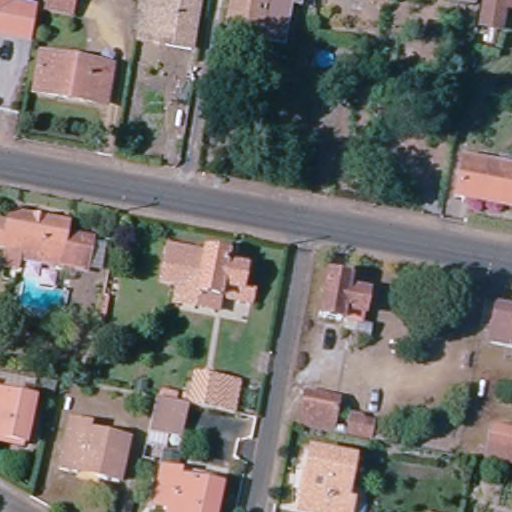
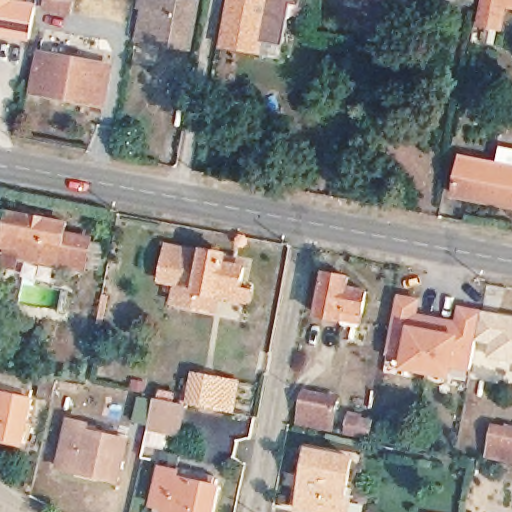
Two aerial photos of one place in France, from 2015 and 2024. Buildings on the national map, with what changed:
unchanged [(31,41),(0,36),(0,0),(8,0),(7,3),(37,8),(34,26),(31,41)]
unchanged [(52,19),(56,0),(79,0),(75,23),(52,19)]
unchanged [(129,17),(131,4),(138,5),(139,0),(167,0),(165,10),(189,14),(180,60),(128,52),(135,18),(129,17)]
unchanged [(260,47),(233,41),(241,0),(288,0),(286,9),(276,8),(267,48),(260,47)]
unchanged [(378,8),(331,0),(380,0),(378,8)]
unchanged [(463,12),(439,8),(440,0),(465,0),(463,12)]
unchanged [(476,0),(512,0),(512,14),(496,11),(492,36),(469,33),(476,0)]
unchanged [(101,75),(95,113),(25,100),(32,63),(101,75)]
unchanged [(455,167),(487,173),(489,165),(512,170),(512,178),(512,215),(447,202),(455,167)]
unchanged [(10,216),(67,228),(64,240),(91,245),(86,275),(18,263),(17,272),(4,269),(7,251),(0,250),(0,225),(8,227),(10,216)]
unchanged [(166,301),(167,295),(169,286),(152,283),(157,254),(159,247),(195,254),(217,259),(216,268),(235,272),(231,289),(243,292),(240,306),(209,300),(207,310),(166,301)]
unchanged [(332,322),(309,318),(317,277),(339,281),(338,292),(358,296),(354,317),(352,326),(332,322)]
new [(455,371),(453,378),(402,367),(403,362),(389,359),(395,319),(399,295),(423,300),(420,316),(457,322),(460,306),(486,311),(483,330),(477,329),(472,371),(455,371)]
new [(494,302),(512,306),(512,346),(488,341),(494,302)]
demolished [(512,322),(512,360),(485,354),(487,343),(491,318),(512,322)]
unchanged [(188,382),(233,391),(227,422),(182,413),(188,382)]
unchanged [(300,396),(333,402),(326,436),(294,431),(300,396)]
unchanged [(23,409),(14,450),(0,447),(0,405),(23,409)]
unchanged [(151,408),(182,413),(175,444),(144,439),(151,408)]
unchanged [(349,414),(374,419),(371,439),(345,434),(349,414)]
unchanged [(78,435),(76,441),(118,450),(109,488),(52,475),(62,432),(78,435)]
unchanged [(512,471),(485,465),(491,435),(512,440),(512,471)]
unchanged [(335,503),(341,505),(340,512),(292,512),(302,455),(344,463),(335,503)]
unchanged [(177,483),(220,492),(217,512),(171,512),(171,511),(156,507),(164,473),(179,476),(177,483)]

